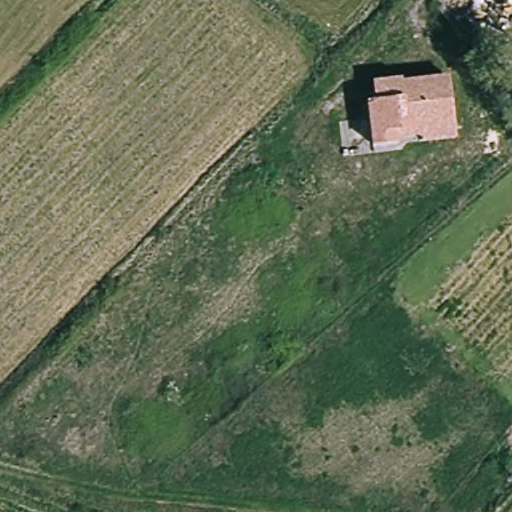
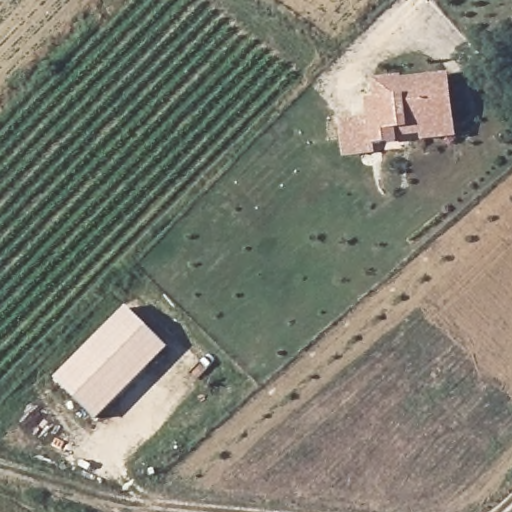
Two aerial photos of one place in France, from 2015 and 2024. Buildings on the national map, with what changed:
unchanged [(335,116),(368,112),(367,97),(374,97),(371,78),(448,68),(457,135),(405,142),(404,150),(342,157),(335,116)]
new [(55,380),(125,307),(168,348),(96,421),(55,380)]

